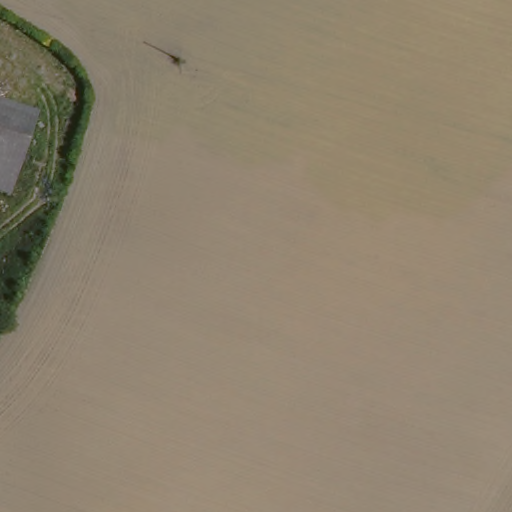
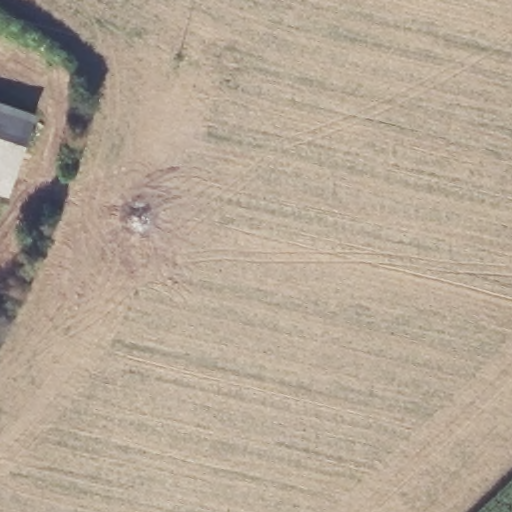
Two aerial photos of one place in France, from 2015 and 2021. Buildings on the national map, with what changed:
unchanged [(23,172),(0,164),(0,114),(38,126),(23,172)]
unchanged [(0,194),(0,164),(23,172),(14,199),(0,194)]

